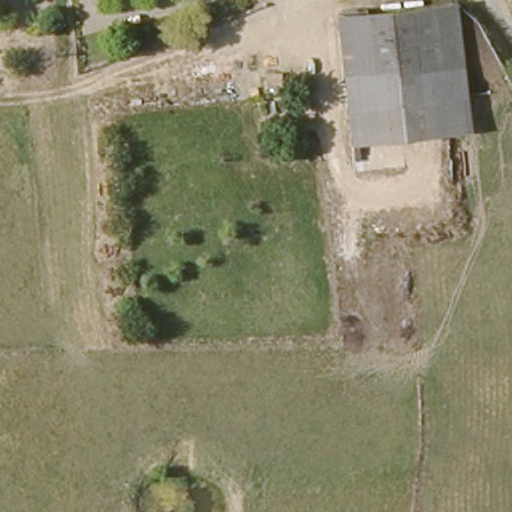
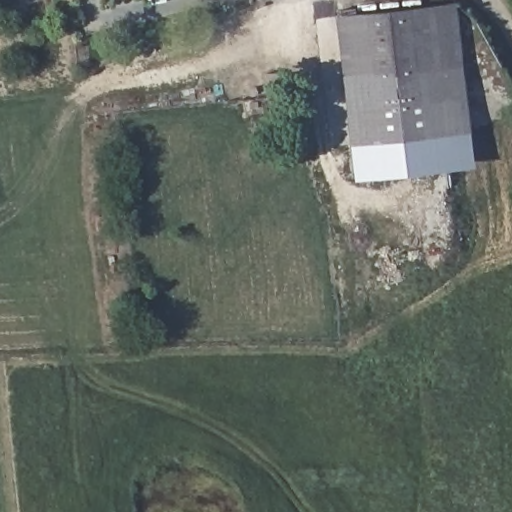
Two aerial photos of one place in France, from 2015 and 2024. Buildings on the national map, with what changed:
unchanged [(454,7),(462,100),(342,114),(333,20),(454,7)]
unchanged [(462,100),(465,127),(344,142),(342,114),(462,100)]
new [(471,166),(349,179),(344,142),(465,127),(471,166)]

